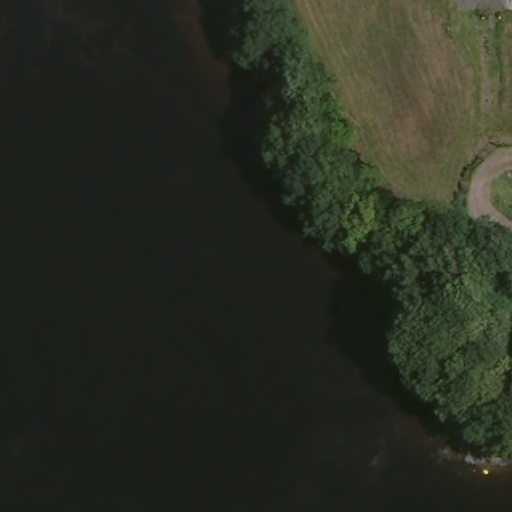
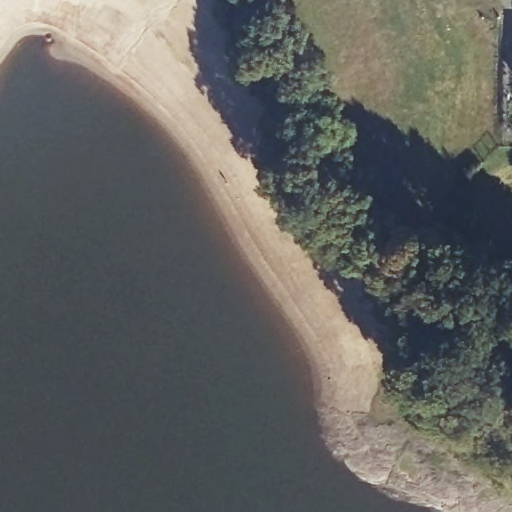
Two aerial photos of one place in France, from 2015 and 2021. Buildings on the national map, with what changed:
[]

